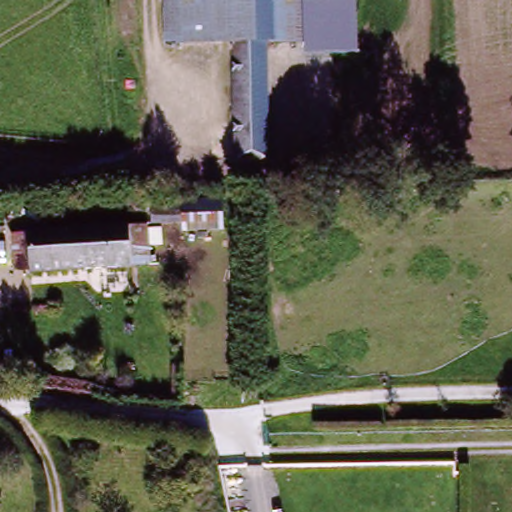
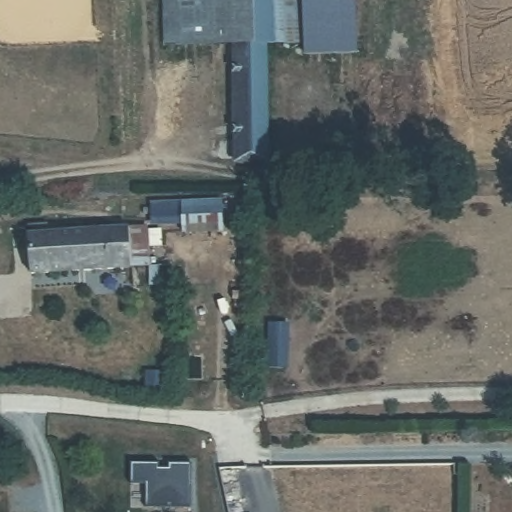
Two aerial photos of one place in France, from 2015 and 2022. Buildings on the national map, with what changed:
unchanged [(165,48),(163,0),(274,0),(276,46),(265,46),(234,47),(165,48)]
unchanged [(276,46),(274,0),(303,0),(304,46),(276,46)]
unchanged [(359,55),(303,56),(304,46),(303,0),(357,0),(359,55)]
unchanged [(247,180),(235,180),(234,47),(265,46),(266,180),(247,180)]
unchanged [(182,231),(181,200),(221,199),(222,229),(182,231)]
unchanged [(30,273),(30,261),(8,262),(6,234),(28,233),(129,227),(146,226),(147,248),(130,249),(131,267),(30,273)]
new [(131,463),(160,463),(159,468),(169,468),(169,462),(192,463),(191,508),(146,507),(146,484),(131,484),(131,463)]

